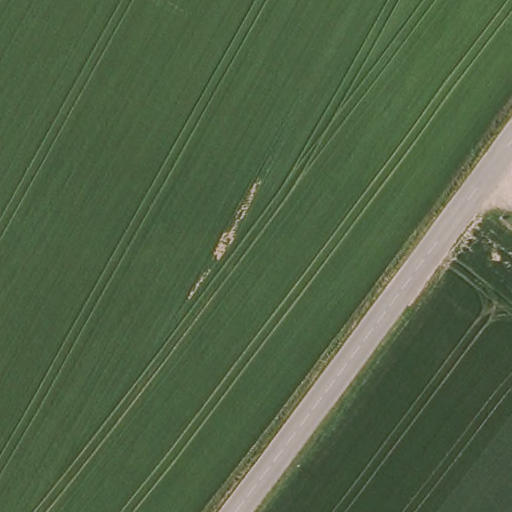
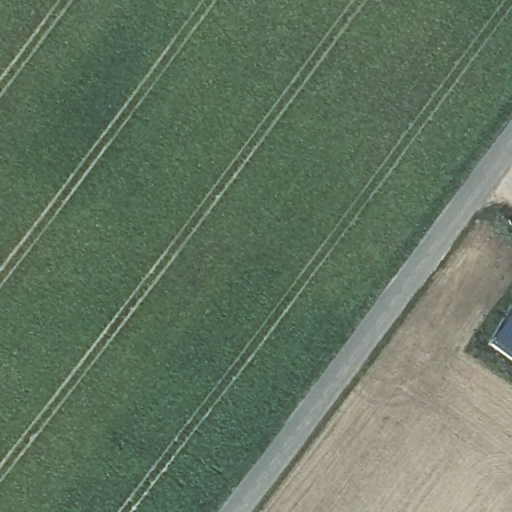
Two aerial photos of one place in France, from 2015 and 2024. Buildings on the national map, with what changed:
new [(490,344),(512,314),(512,360),(490,344)]

